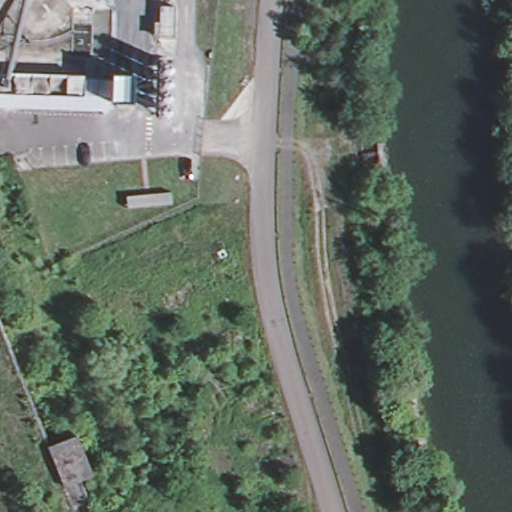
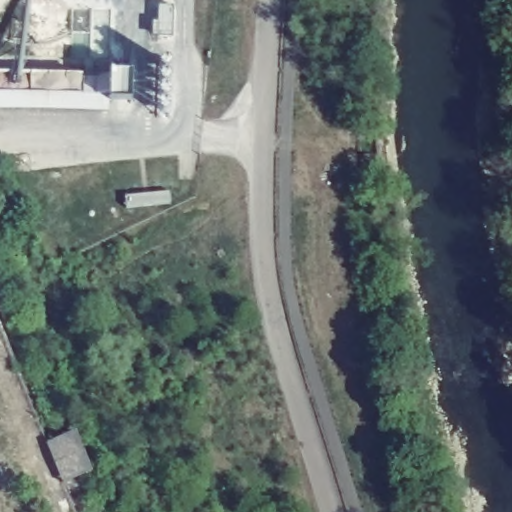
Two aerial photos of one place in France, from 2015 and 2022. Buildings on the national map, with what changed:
unchanged [(165,15),(178,15),(177,37),(165,37),(165,15)]
unchanged [(110,79),(110,73),(133,74),(132,101),(109,100),(110,94),(82,92),(81,107),(9,104),(10,90),(0,90),(0,75),(110,79)]
unchanged [(59,483),(42,440),(67,427),(82,466),(68,476),(59,483)]

